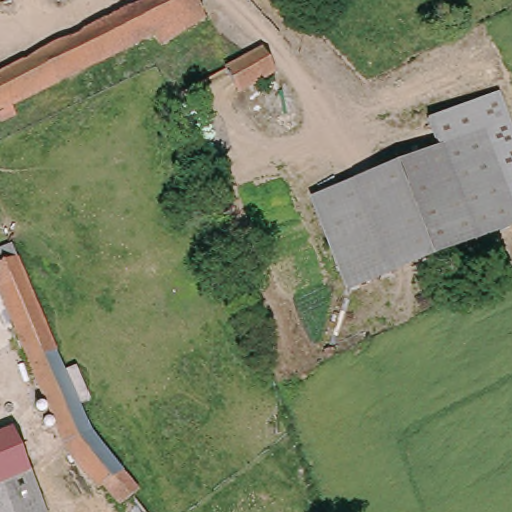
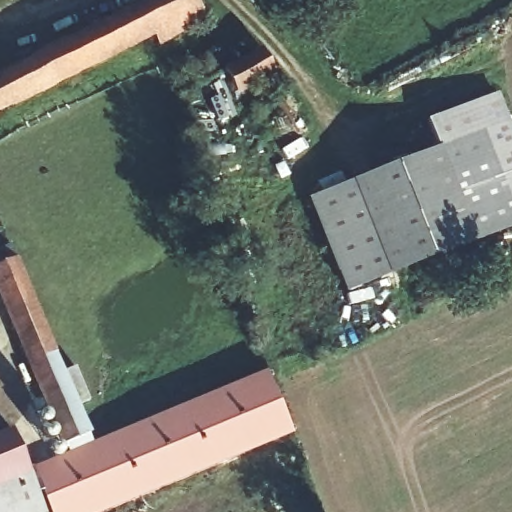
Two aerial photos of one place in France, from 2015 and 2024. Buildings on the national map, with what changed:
unchanged [(203,21),(165,42),(159,32),(0,118),(0,82),(149,0),(192,0),(203,21)]
unchanged [(275,78),(236,96),(223,70),(261,51),(275,78)]
unchanged [(421,122),(492,93),(512,142),(512,226),(510,227),(473,135),(432,151),(421,122)]
unchanged [(473,135),(510,227),(346,294),(306,201),(432,151),(473,135)]
new [(0,298),(0,250),(12,245),(66,371),(75,367),(89,401),(81,404),(93,434),(90,436),(93,444),(270,370),(293,435),(103,512),(50,512),(32,467),(53,459),(29,405),(43,399),(0,298)]
demolished [(83,382),(98,416),(82,422),(87,434),(145,509),(141,512),(118,512),(111,500),(100,503),(63,452),(63,442),(0,284),(0,264),(15,258),(68,387),(83,382)]
unchanged [(40,512),(0,512),(0,442),(10,438),(40,512)]

